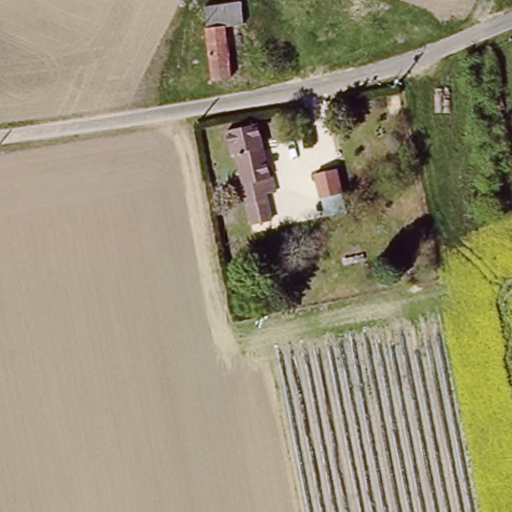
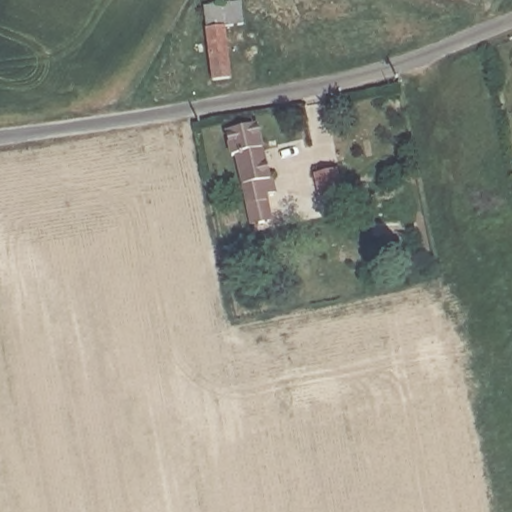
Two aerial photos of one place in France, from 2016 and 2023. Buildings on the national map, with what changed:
unchanged [(222,25),(229,79),(210,81),(202,9),(240,5),(242,22),(222,25)]
unchanged [(236,154),(230,155),(225,130),(254,124),(265,180),(269,179),(272,196),(264,198),(268,221),(250,224),(236,154)]
unchanged [(339,200),(319,204),(314,180),(334,175),(339,200)]

